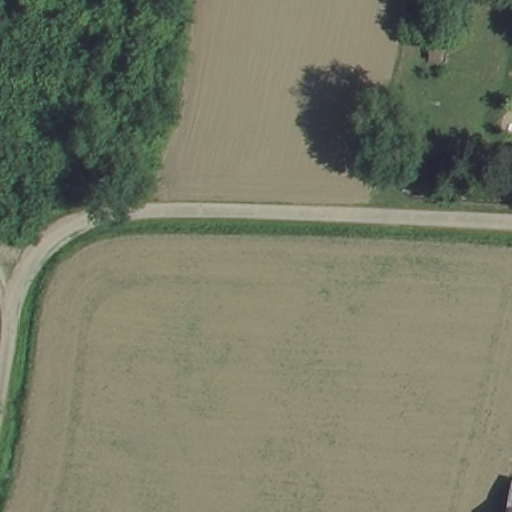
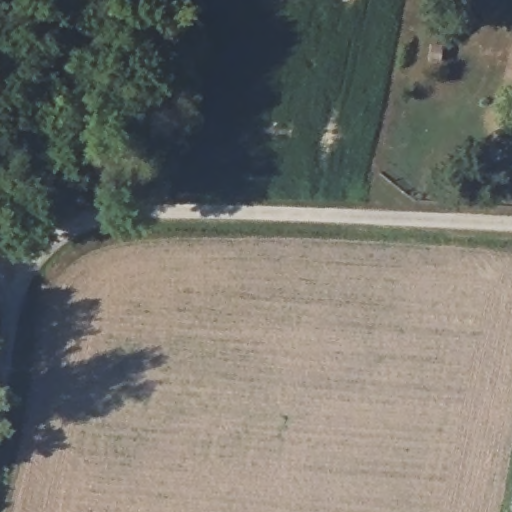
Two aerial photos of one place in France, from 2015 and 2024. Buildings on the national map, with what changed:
unchanged [(512,512),(507,512),(512,480),(512,512)]

